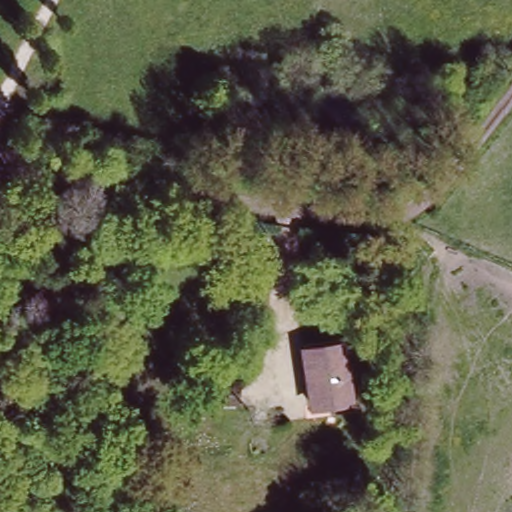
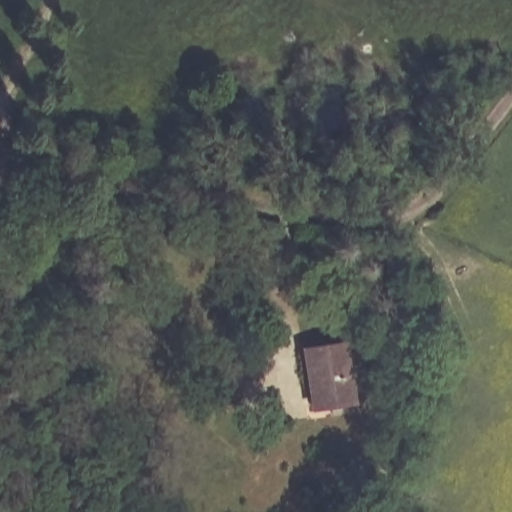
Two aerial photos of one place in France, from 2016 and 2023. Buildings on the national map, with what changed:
unchanged [(311,355),(343,349),(356,395),(334,401),(335,407),(316,410),(311,355)]
unchanged [(243,392),(231,391),(221,390),(223,367),(233,367),(246,368),(243,392)]

